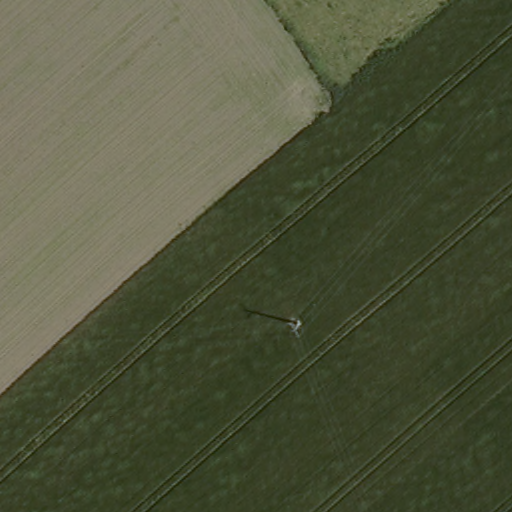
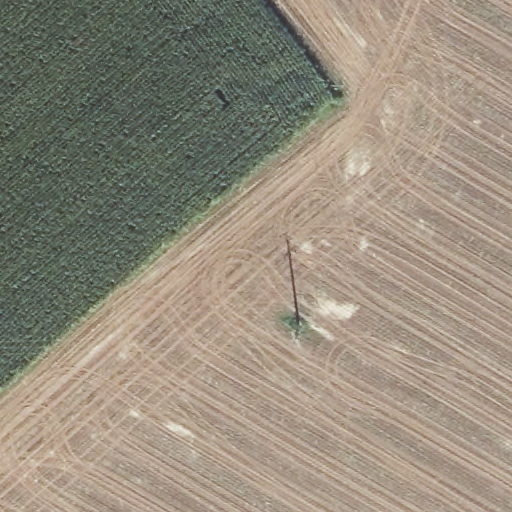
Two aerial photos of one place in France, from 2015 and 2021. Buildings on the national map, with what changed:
[]

